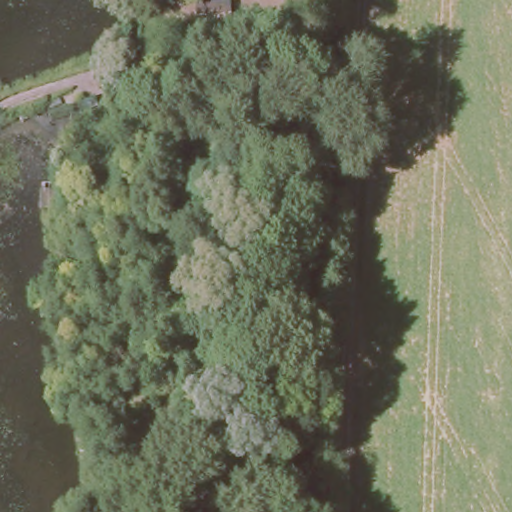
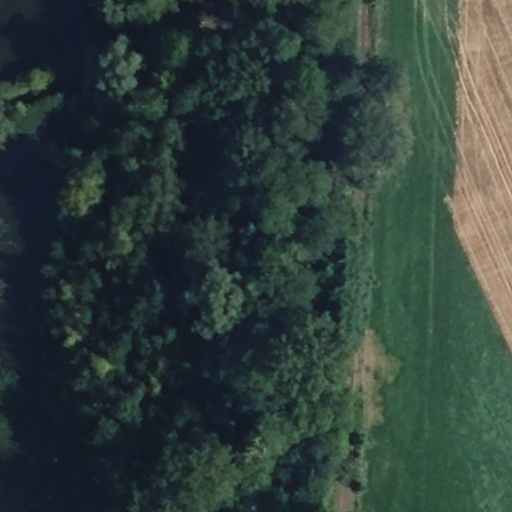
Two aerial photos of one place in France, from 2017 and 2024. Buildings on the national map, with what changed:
unchanged [(230,7),(231,41),(196,40),(197,7),(230,7)]

